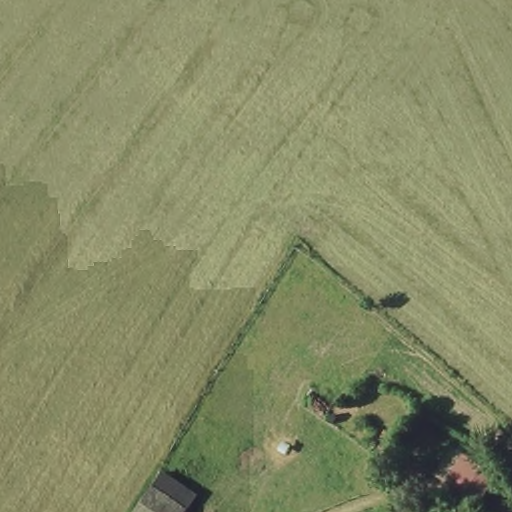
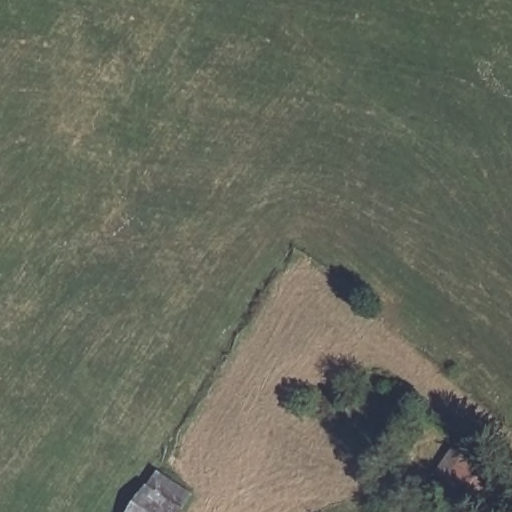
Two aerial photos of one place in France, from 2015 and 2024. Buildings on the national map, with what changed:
unchanged [(432,412),(416,430),(402,423),(416,402),(432,412)]
unchanged [(503,475),(480,502),(442,478),(460,451),(503,475)]
unchanged [(178,512),(125,512),(139,487),(178,512)]

